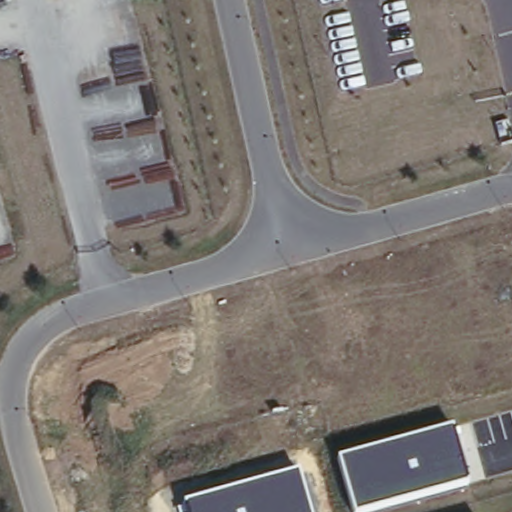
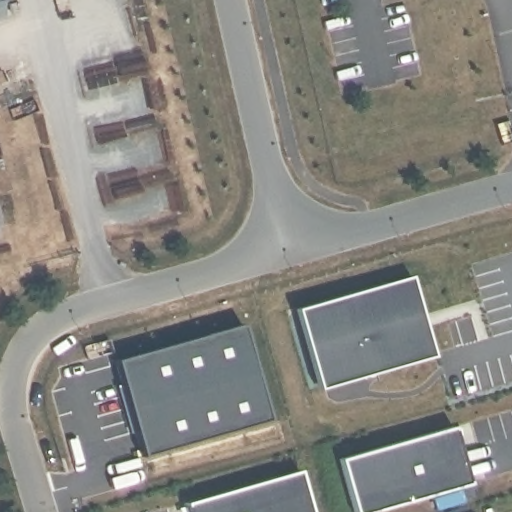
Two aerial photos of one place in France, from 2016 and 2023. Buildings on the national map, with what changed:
new [(413,269),(433,354),(319,386),(295,302),(413,269)]
new [(117,360),(233,327),(257,426),(144,458),(117,360)]
unchanged [(454,427),(469,482),(363,512),(353,512),(338,458),(454,427)]
unchanged [(299,471),(310,512),(184,512),(182,504),(299,471)]

